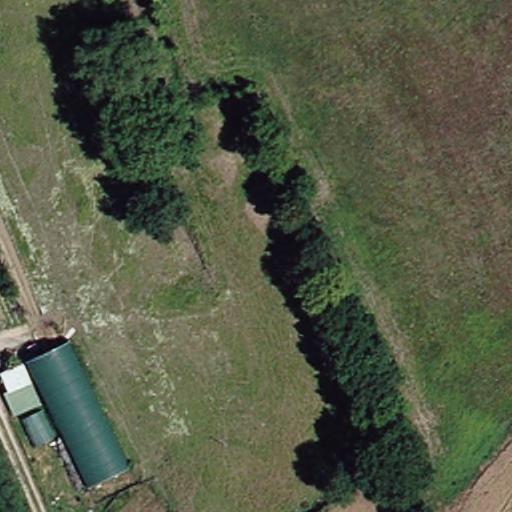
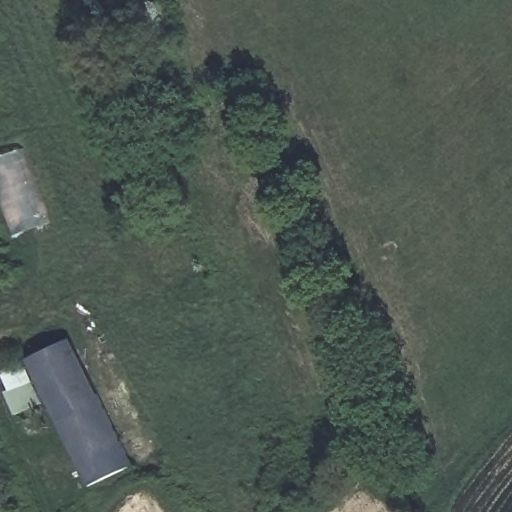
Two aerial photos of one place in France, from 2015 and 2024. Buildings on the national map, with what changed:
new [(15,237),(0,194),(0,157),(22,147),(49,224),(15,237)]
unchanged [(80,481),(53,424),(22,360),(21,356),(64,335),(123,460),(80,481)]
unchanged [(26,435),(0,379),(0,369),(22,360),(53,424),(26,435)]

